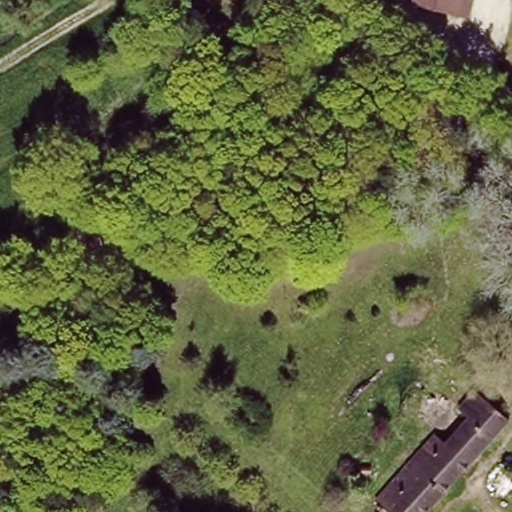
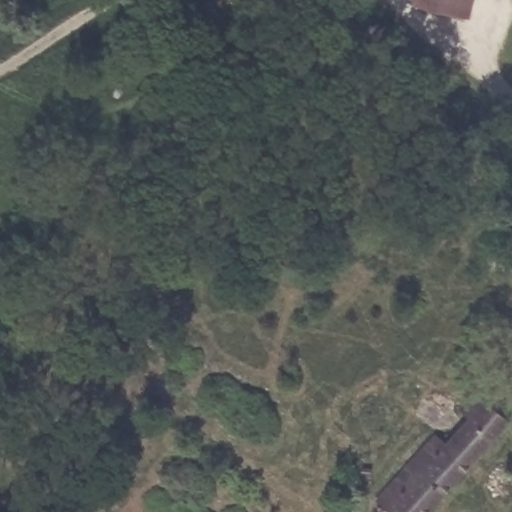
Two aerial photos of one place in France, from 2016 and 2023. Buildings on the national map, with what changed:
unchanged [(457,16),(414,5),(415,0),(474,0),(469,19),(457,16)]
unchanged [(512,420),(441,512),(392,512),(380,503),(432,435),(447,447),(471,417),(458,407),(477,381),(512,409),(512,420)]

